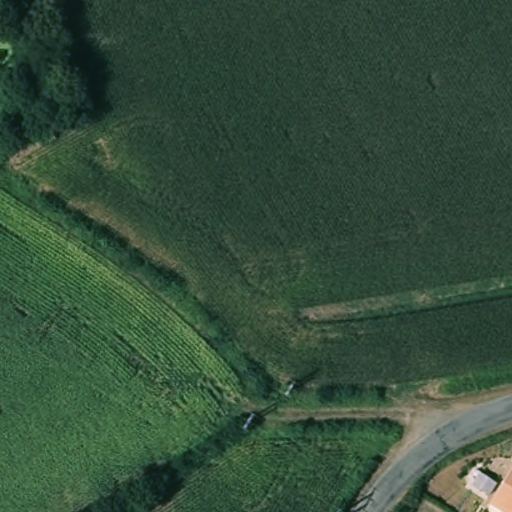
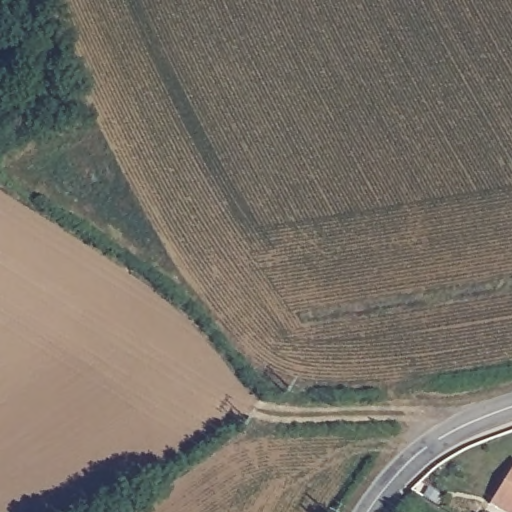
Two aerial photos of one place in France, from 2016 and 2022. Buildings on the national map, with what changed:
unchanged [(489,505),(512,466),(512,512),(500,512),(489,505)]

